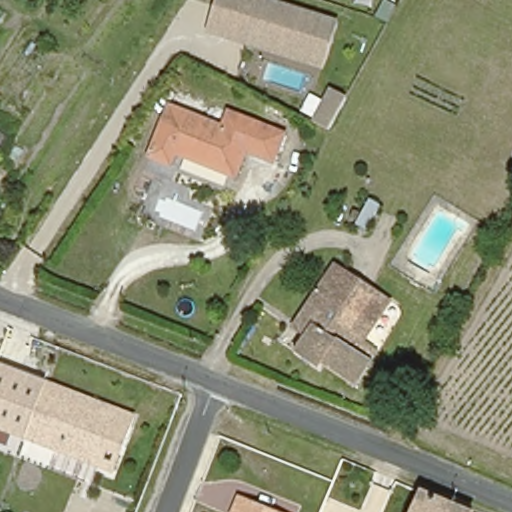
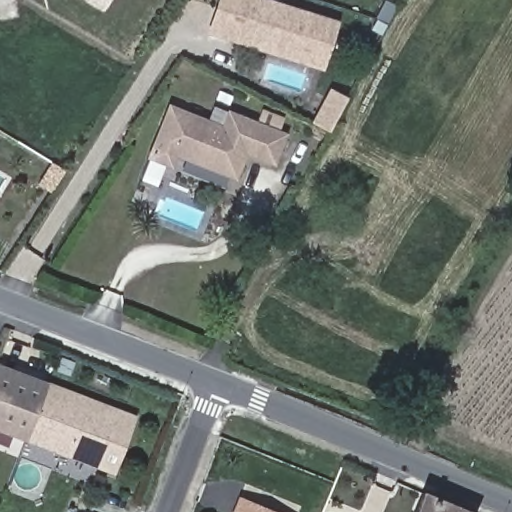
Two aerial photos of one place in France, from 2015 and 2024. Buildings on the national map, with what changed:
new [(104,8),(91,0),(109,0),(104,8)]
unchanged [(244,26),(255,30),(253,37),(213,23),(221,0),(253,0),(244,26)]
unchanged [(321,19),(320,21),(338,28),(325,64),(253,37),(255,30),(244,26),(253,0),(268,0),(321,19)]
demolished [(0,22),(0,7),(7,12),(0,22)]
unchanged [(346,94),(326,133),(309,122),(329,85),(346,94)]
unchanged [(180,154),(176,166),(153,159),(170,107),(224,125),(229,109),(259,119),(287,129),(278,157),(249,148),(241,174),(180,154)]
demolished [(336,300),(377,328),(367,343),(382,354),(357,390),(324,368),(322,372),(298,356),(309,340),(295,330),(337,268),(351,278),(336,300)]
unchanged [(50,382),(46,391),(37,413),(28,437),(0,428),(0,366),(50,382)]
unchanged [(37,413),(46,391),(99,412),(101,406),(120,413),(109,442),(100,465),(28,437),(37,413)]
unchanged [(473,512),(416,512),(424,492),(473,512)]
unchanged [(231,512),(238,495),(281,512),(231,512)]

